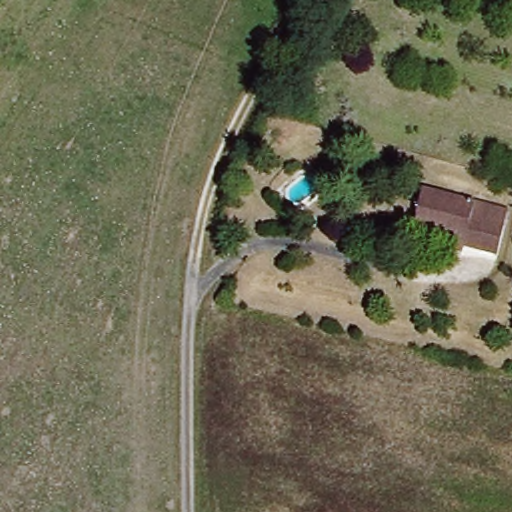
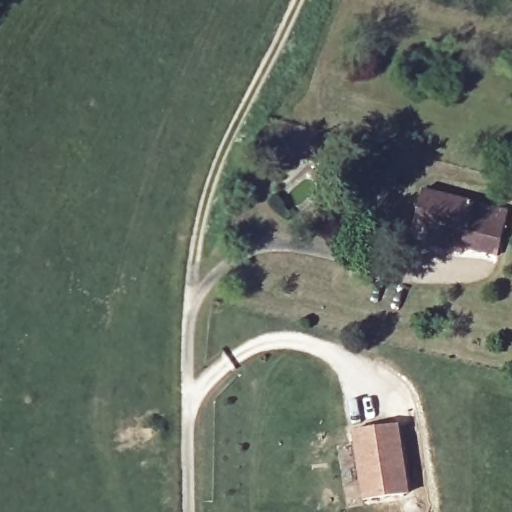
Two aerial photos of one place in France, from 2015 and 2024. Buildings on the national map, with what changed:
unchanged [(422,243),(426,229),(413,225),(422,192),(503,215),(492,255),(459,246),(457,251),(422,243)]
new [(399,425),(409,493),(362,500),(351,432),(399,425)]

